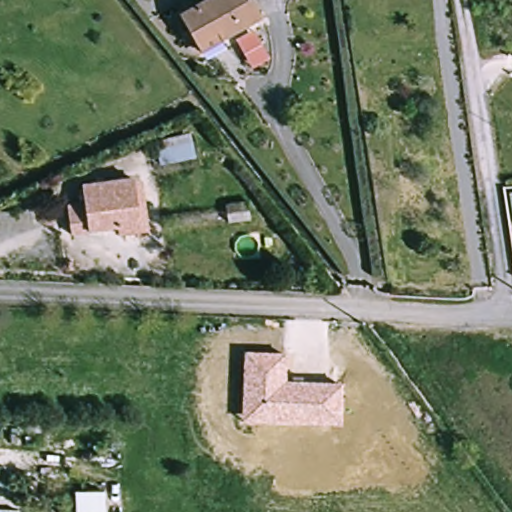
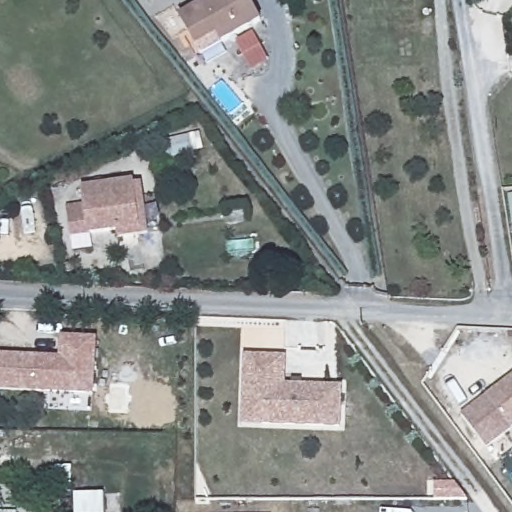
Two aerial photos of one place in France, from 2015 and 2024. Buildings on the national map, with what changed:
unchanged [(179,20),(210,0),(249,0),(264,23),(231,43),(204,60),(200,54),(179,20)]
unchanged [(135,184),(139,226),(70,230),(68,202),(88,200),(89,182),(135,184)]
new [(59,338),(93,340),(90,395),(0,390),(0,356),(58,360),(59,338)]
unchanged [(243,425),(244,351),(288,353),(289,385),(342,387),(341,428),(243,425)]
new [(488,448),(461,415),(512,376),(512,429),(488,448)]
new [(75,495),(103,494),(104,512),(76,512),(75,495)]
unchanged [(0,508),(20,507),(21,512),(0,512),(0,508)]

